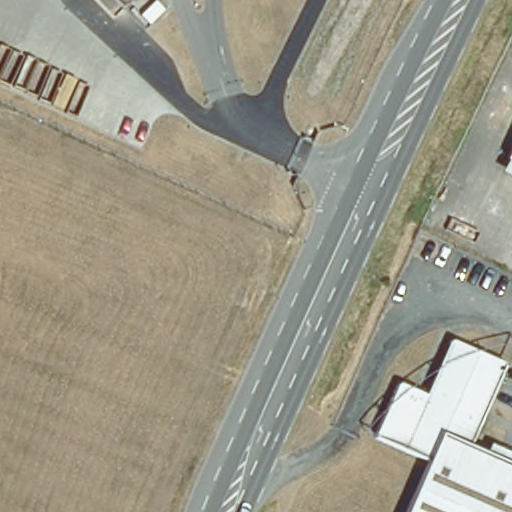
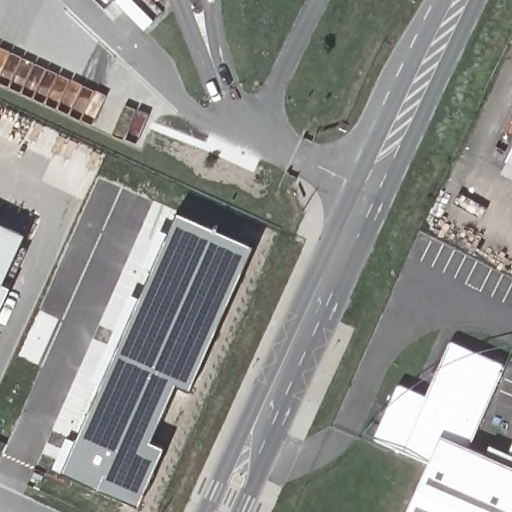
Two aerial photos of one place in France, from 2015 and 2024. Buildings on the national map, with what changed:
unchanged [(512,142),(512,162),(504,157),(512,142)]
new [(177,211),(253,245),(189,388),(175,382),(150,440),(163,446),(138,506),(62,471),(177,211)]
new [(25,234),(2,282),(10,286),(0,308),(0,222),(25,234)]
unchanged [(421,466),(374,446),(398,392),(421,402),(448,342),(503,367),(468,447),(486,455),(490,447),(512,457),(512,512),(403,512),(421,466)]

